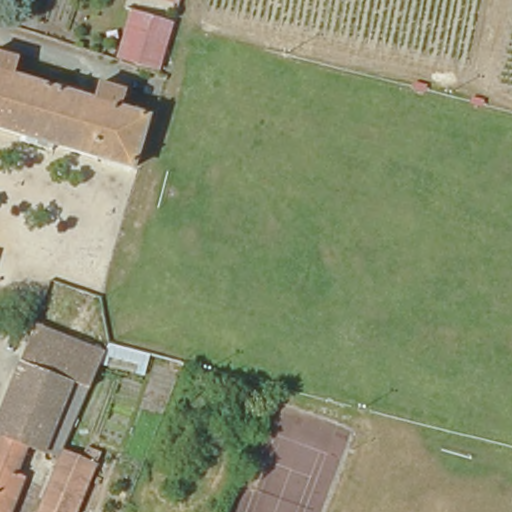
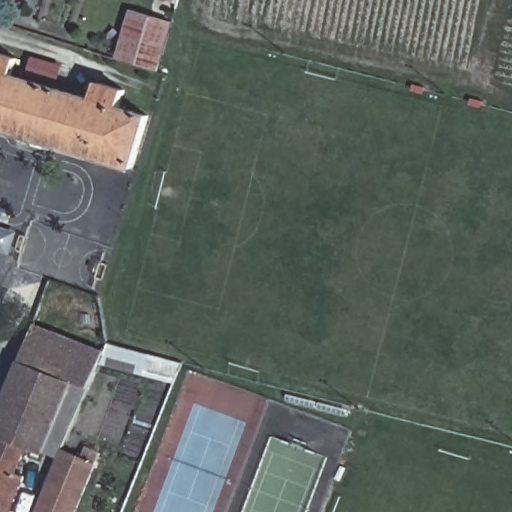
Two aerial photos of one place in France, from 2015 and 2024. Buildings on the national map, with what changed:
unchanged [(164,0),(179,0),(177,5),(164,0)]
unchanged [(172,25),(159,74),(120,60),(131,13),(172,25)]
unchanged [(19,59),(12,75),(97,99),(101,80),(130,89),(126,105),(151,113),(135,171),(0,131),(0,54),(19,59)]
unchanged [(0,249),(0,232),(5,234),(0,249)]
unchanged [(34,327),(102,353),(89,392),(75,388),(50,454),(36,450),(12,512),(0,512),(0,412),(34,327)]
unchanged [(65,452),(95,464),(77,512),(41,512),(65,452)]

